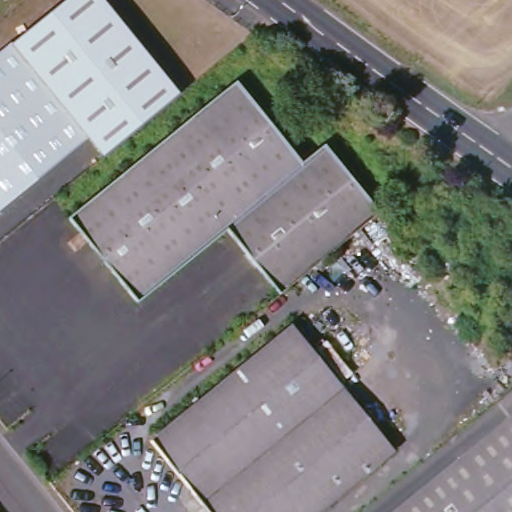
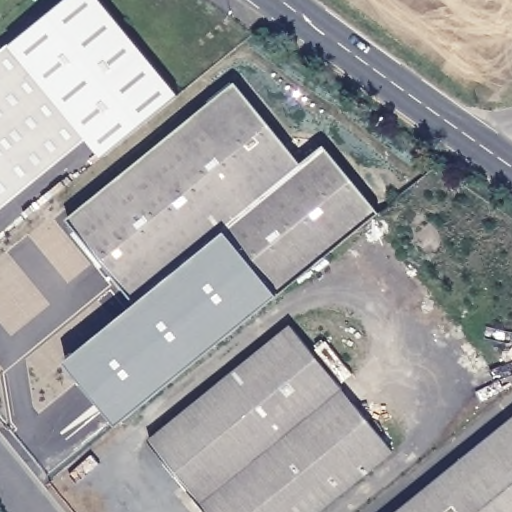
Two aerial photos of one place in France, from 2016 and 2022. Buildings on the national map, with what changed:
unchanged [(10,43),(64,0),(103,0),(180,96),(102,158),(86,136),(0,208),(0,52),(10,43)]
unchanged [(280,295),(231,232),(140,304),(67,213),(197,110),(235,80),(302,161),(333,141),(388,208),(383,213),(342,246),(280,295)]
new [(231,232),(280,295),(121,423),(70,362),(140,304),(231,232)]
unchanged [(293,323),(396,450),(320,512),(211,512),(151,437),(293,323)]
unchanged [(512,512),(401,512),(512,423),(512,512)]

